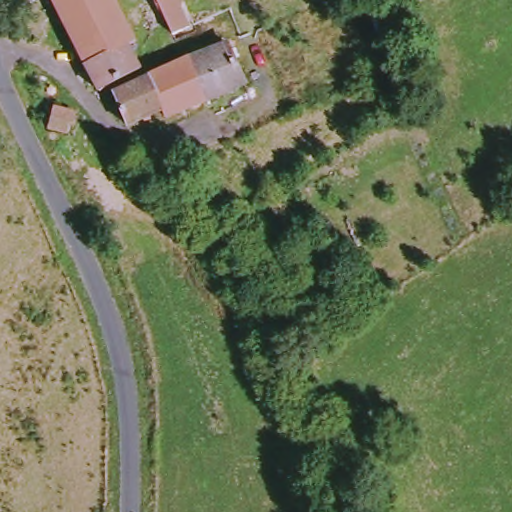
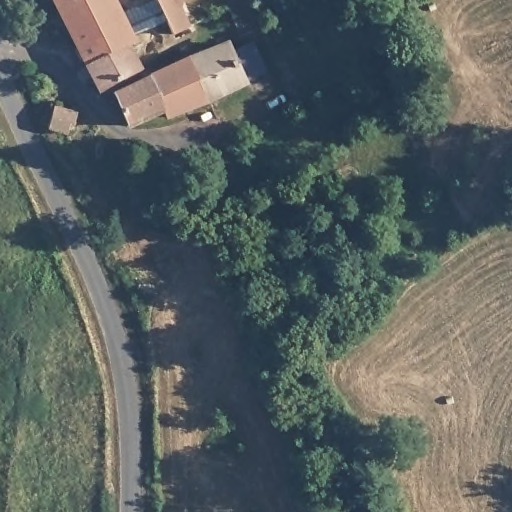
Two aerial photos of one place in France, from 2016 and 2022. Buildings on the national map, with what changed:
unchanged [(122,0),(142,41),(135,47),(147,71),(120,84),(105,91),(60,0),(122,0)]
unchanged [(177,36),(158,0),(179,0),(191,27),(177,36)]
unchanged [(197,59),(237,44),(253,82),(211,100),(197,59)]
unchanged [(172,120),(168,112),(157,79),(195,60),(197,59),(211,100),(172,120)]
unchanged [(135,130),(121,100),(118,95),(123,93),(157,79),(168,112),(135,130)]
unchanged [(47,123),(52,105),(73,111),(67,134),(47,123)]

